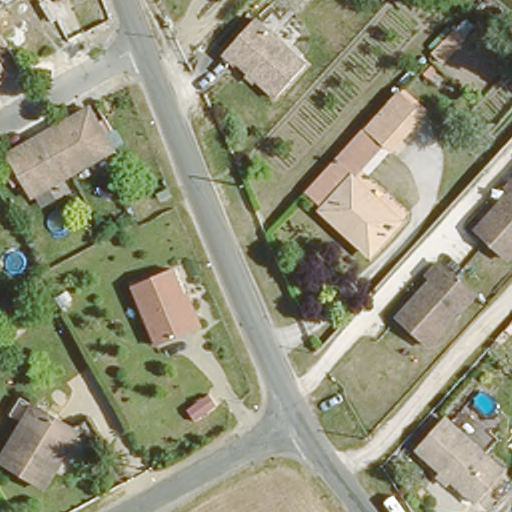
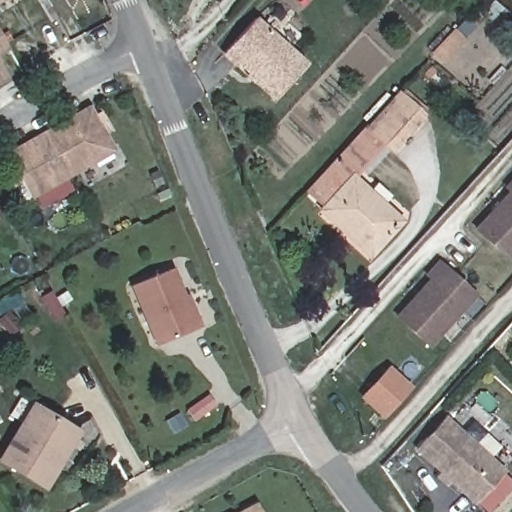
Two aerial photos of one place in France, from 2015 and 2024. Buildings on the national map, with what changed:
unchanged [(299,61),(267,95),(216,49),(246,14),(299,61)]
unchanged [(440,60),(430,49),(453,25),(465,34),(440,60)]
unchanged [(0,48),(0,26),(10,41),(0,48)]
unchanged [(0,56),(7,69),(0,74),(0,56)]
unchanged [(0,77),(0,74),(7,69),(9,71),(0,77)]
unchanged [(423,112),(356,185),(380,207),(385,204),(398,217),(371,246),(350,225),(346,230),(321,205),(322,204),(307,189),(359,134),(398,90),(423,112)]
unchanged [(112,141),(28,191),(5,151),(87,100),(112,141)]
unchanged [(506,255),(475,226),(509,188),(505,185),(512,177),(512,248),(506,255)]
unchanged [(150,203),(141,210),(136,201),(146,195),(150,203)]
unchanged [(425,345),(395,315),(431,278),(427,275),(439,263),(455,279),(473,296),(425,345)]
unchanged [(192,327),(150,342),(127,282),(169,266),(192,327)]
new [(392,370),(413,390),(387,418),(367,397),(392,370)]
unchanged [(1,453),(34,397),(45,404),(73,421),(80,425),(68,445),(65,450),(47,481),(1,453)]
unchanged [(482,451),(502,469),(472,501),(415,449),(445,416),(482,451)]
new [(258,505),(262,512),(245,512),(258,505)]

